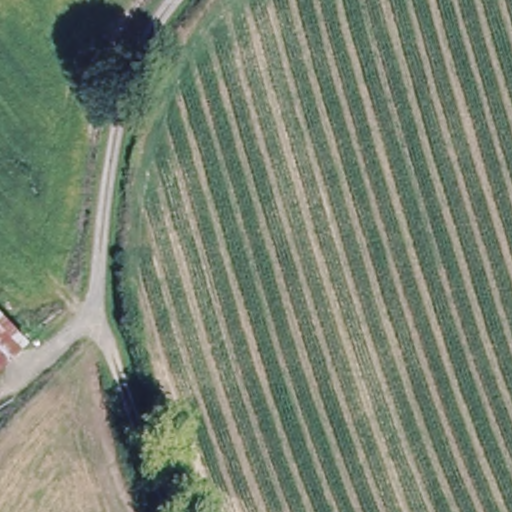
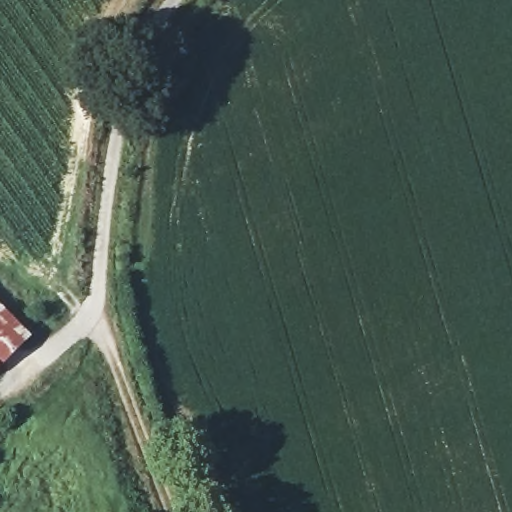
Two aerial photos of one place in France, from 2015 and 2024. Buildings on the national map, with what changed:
unchanged [(0,372),(0,310),(30,342),(0,372)]

